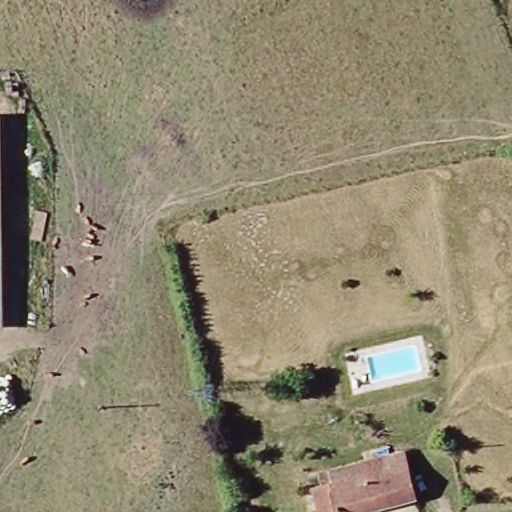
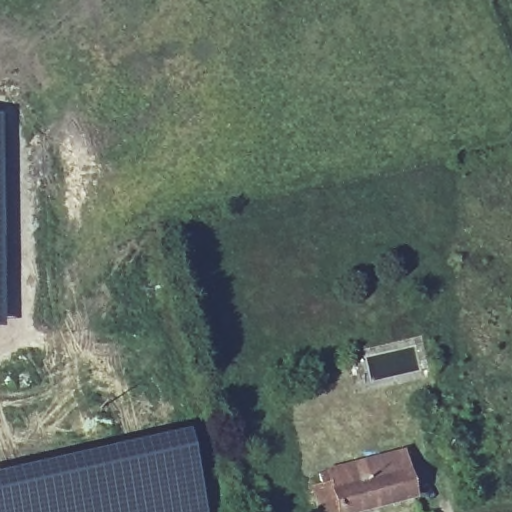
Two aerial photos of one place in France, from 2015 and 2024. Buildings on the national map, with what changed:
unchanged [(6,329),(0,329),(0,116),(3,116),(6,329)]
new [(205,512),(0,512),(0,475),(187,432),(205,512)]
unchanged [(411,452),(423,497),(366,512),(312,512),(306,489),(315,487),(313,478),(411,452)]

